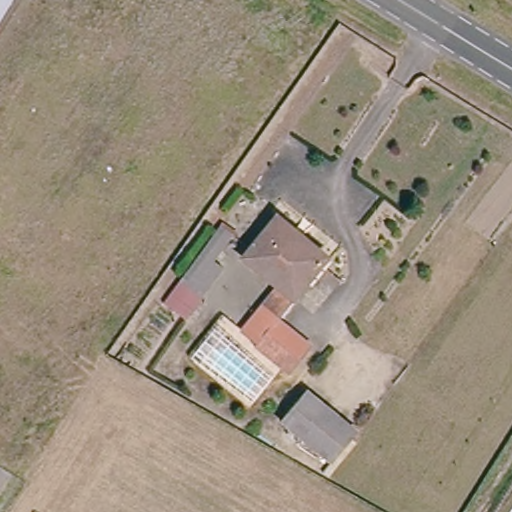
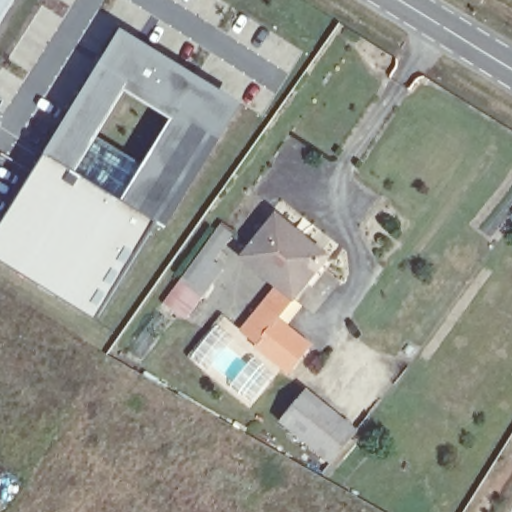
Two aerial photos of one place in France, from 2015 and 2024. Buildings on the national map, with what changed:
unchanged [(0,18),(0,0),(11,0),(0,18)]
new [(45,156),(122,31),(177,64),(243,106),(167,231),(156,224),(130,272),(98,322),(0,262),(0,230),(45,156)]
unchanged [(210,260),(221,269),(185,319),(163,302),(214,222),(231,232),(210,260)]
unchanged [(255,313),(273,292),(239,262),(272,222),(289,235),(322,262),(316,267),(287,302),(269,325),(255,313)]
unchanged [(300,348),(282,372),(252,347),(269,326),(300,348)]
unchanged [(279,420),(304,391),(354,432),(327,461),(279,420)]

